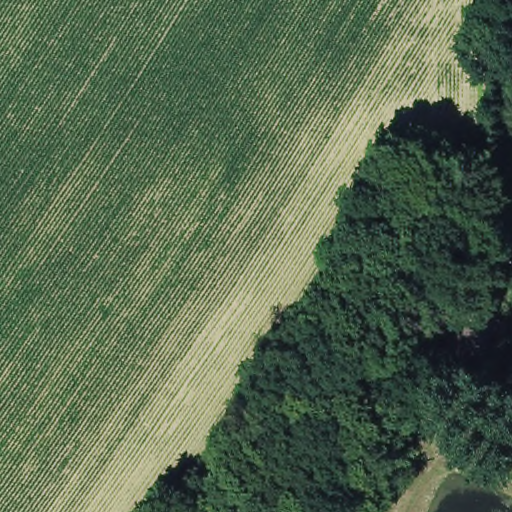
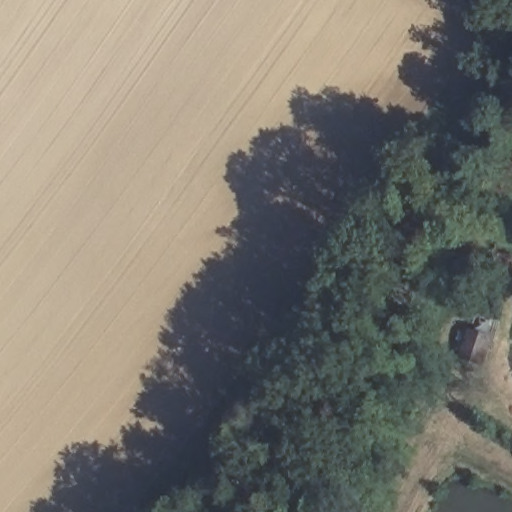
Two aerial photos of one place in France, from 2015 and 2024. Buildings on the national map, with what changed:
unchanged [(495,342),(487,376),(457,366),(471,329),(495,342)]

